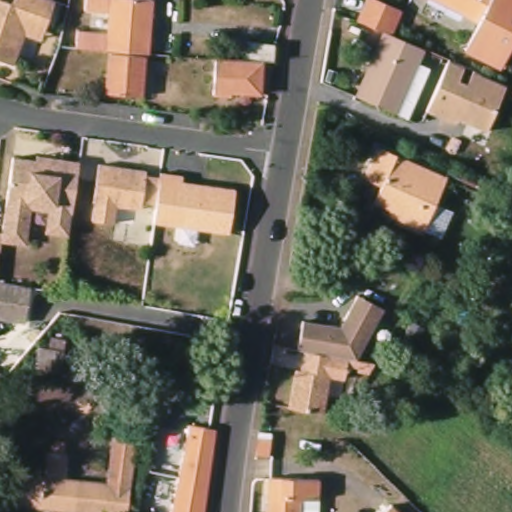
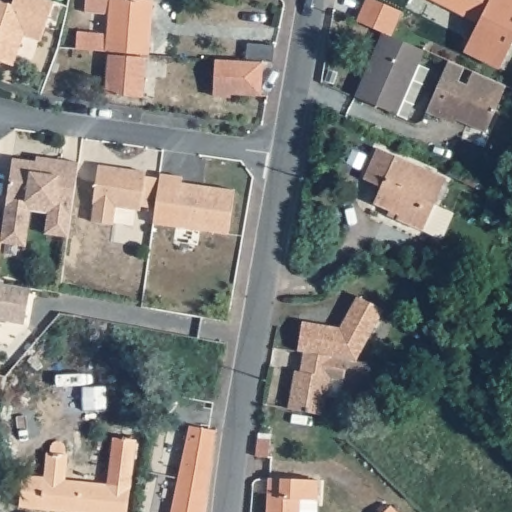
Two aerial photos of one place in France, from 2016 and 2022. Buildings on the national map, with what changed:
unchanged [(28,30),(17,62),(0,56),(0,0),(12,0),(16,2),(17,0),(58,0),(53,15),(45,36),(28,30)]
unchanged [(89,10),(90,0),(150,0),(158,1),(155,27),(112,23),(113,13),(89,10)]
unchanged [(374,0),(400,12),(389,36),(383,34),(354,21),(365,0),(374,0)]
unchanged [(464,52),(478,25),(430,0),(512,0),(512,45),(499,70),(464,52)]
unchanged [(151,54),(78,47),(81,31),(111,34),(112,23),(155,27),(151,54)]
unchanged [(355,97),(361,82),(383,34),(389,36),(422,51),(416,65),(429,70),(413,105),(406,121),(394,115),(355,97)]
unchanged [(246,59),(248,44),(273,46),(272,62),(246,59)]
unchanged [(149,57),(146,97),(111,95),(114,55),(149,57)]
unchanged [(259,96),(230,93),(230,99),(213,97),(216,61),(262,64),(259,96)]
unchanged [(503,87),(486,132),(453,121),(452,124),(424,112),(447,62),(503,87)]
unchanged [(392,212),(375,205),(383,189),(366,182),(381,150),(449,180),(425,232),(400,222),(390,217),(392,212)]
unchanged [(12,155),(80,160),(69,232),(45,231),(46,211),(31,211),(25,242),(1,242),(12,155)]
unchanged [(157,208),(142,206),(141,210),(117,207),(114,225),(93,222),(95,205),(99,166),(146,172),(146,176),(161,178),(157,208)]
unchanged [(183,177),(182,182),(235,190),(230,233),(155,224),(157,208),(161,178),(161,174),(183,177)]
unchanged [(24,321),(4,318),(0,317),(0,281),(4,282),(30,286),(24,321)]
unchanged [(306,316),(342,322),(349,311),(360,291),(385,305),(370,332),(358,355),(351,353),(332,350),(328,350),(308,346),(301,344),(306,316)]
unchanged [(328,350),(332,350),(351,353),(347,374),(332,371),(325,412),(293,404),(292,404),(299,366),(304,367),(308,346),(328,350)]
unchanged [(372,370),(357,367),(359,357),(362,358),(374,361),(373,365),(372,369),(372,370)]
unchanged [(5,384),(2,383),(0,383),(0,370),(8,372),(5,384)]
unchanged [(185,426),(209,428),(212,428),(201,512),(166,512),(185,426)]
unchanged [(47,505),(22,501),(26,471),(46,473),(50,448),(52,449),(53,445),(56,442),(59,441),(64,442),(66,442),(68,445),(68,447),(67,450),(69,451),(65,476),(108,482),(115,433),(138,437),(129,512),(103,512),(78,508),(78,512),(47,512),(47,505)]
unchanged [(267,478),(306,482),(306,490),(298,489),(297,512),(266,512),(267,478)]

